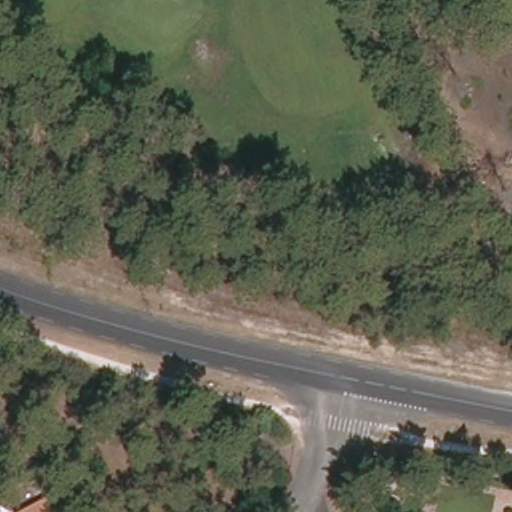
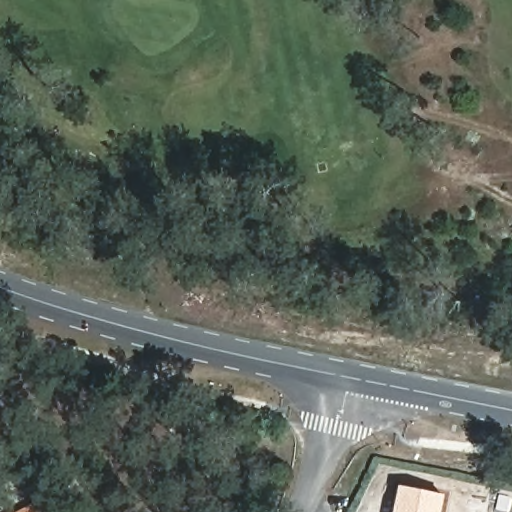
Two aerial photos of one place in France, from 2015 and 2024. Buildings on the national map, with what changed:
new [(443,512),(395,512),(400,485),(446,495),(443,512)]
unchanged [(47,500),(54,512),(22,512),(22,511),(47,500)]

